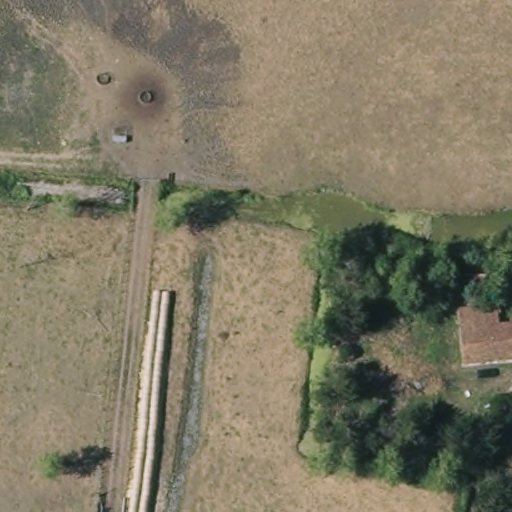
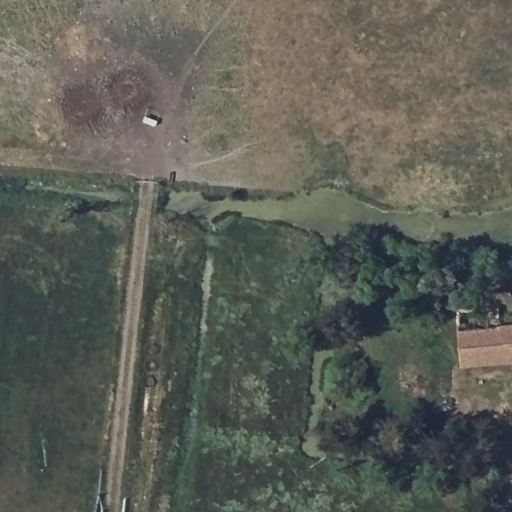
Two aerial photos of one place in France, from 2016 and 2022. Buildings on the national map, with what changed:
unchanged [(457,314),(512,309),(512,365),(459,368),(457,314)]

